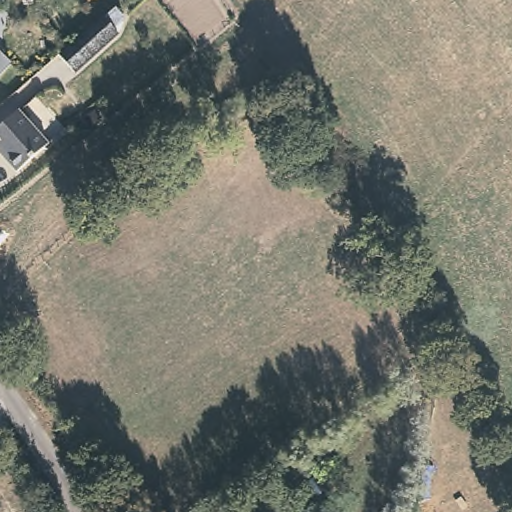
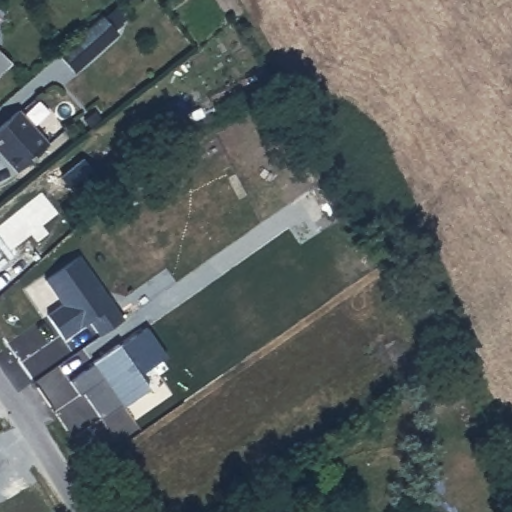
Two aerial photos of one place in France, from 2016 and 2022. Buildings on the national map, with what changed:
unchanged [(64,50),(104,17),(119,35),(79,68),(64,50)]
unchanged [(11,176),(0,162),(0,127),(16,113),(45,147),(11,176)]
new [(98,337),(88,322),(63,340),(46,316),(63,304),(45,280),(79,256),(124,319),(98,337)]
new [(166,356),(140,375),(149,388),(101,421),(84,393),(79,396),(69,380),(146,327),(166,356)]

